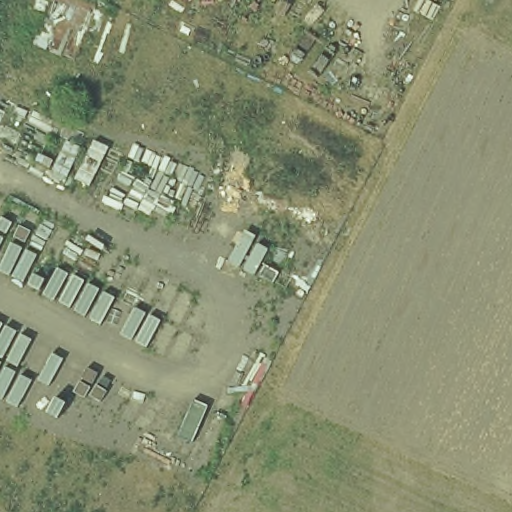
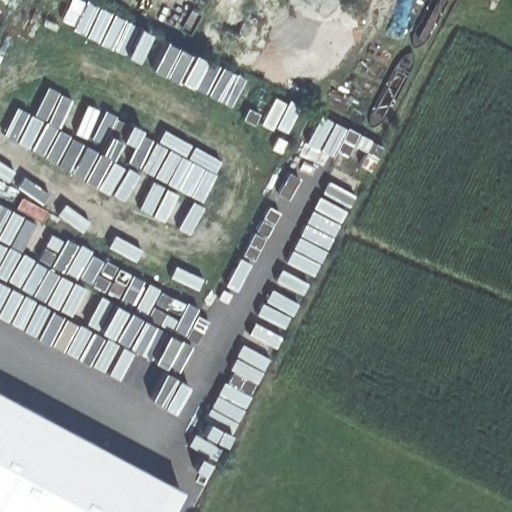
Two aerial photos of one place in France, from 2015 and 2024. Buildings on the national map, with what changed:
new [(175,512),(0,512),(0,394),(184,494),(175,512)]

